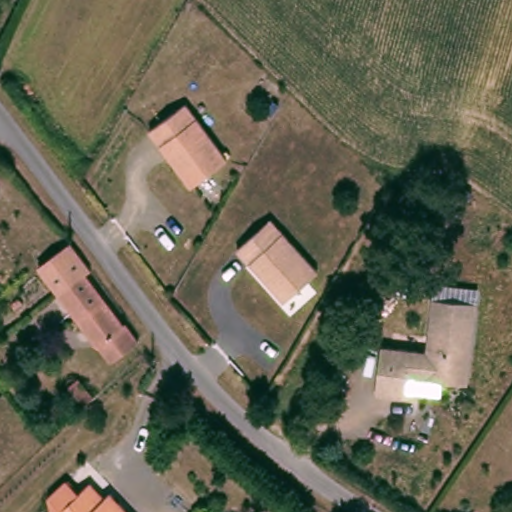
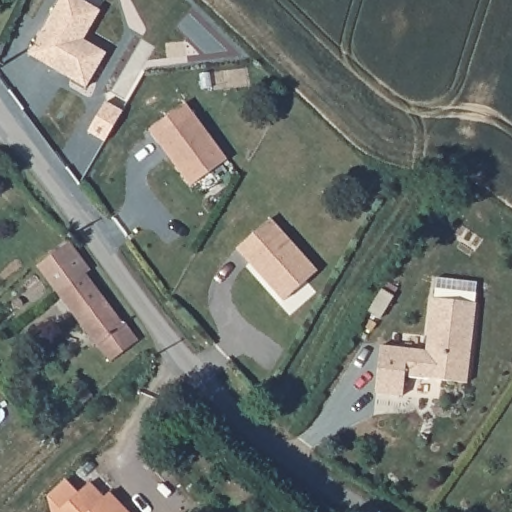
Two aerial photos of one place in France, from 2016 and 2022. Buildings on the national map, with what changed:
new [(60,0),(77,0),(99,12),(83,40),(105,53),(85,90),(28,56),(60,0)]
unchanged [(156,125),(192,97),(234,151),(199,179),(179,153),(168,139),(156,125)]
unchanged [(247,242),(279,211),(327,261),(295,292),(272,268),(259,256),(247,242)]
unchanged [(125,317),(141,337),(115,361),(80,318),(60,295),(37,267),(68,244),(89,270),(84,273),(104,298),(121,321),(125,317)]
unchanged [(435,347),(442,295),(486,300),(476,380),(414,372),(411,392),(384,388),(390,342),(435,347)]
unchanged [(83,377),(94,395),(85,402),(73,384),(83,377)]
unchanged [(48,494),(65,477),(79,492),(89,483),(103,497),(107,492),(125,512),(50,512),(48,494)]

